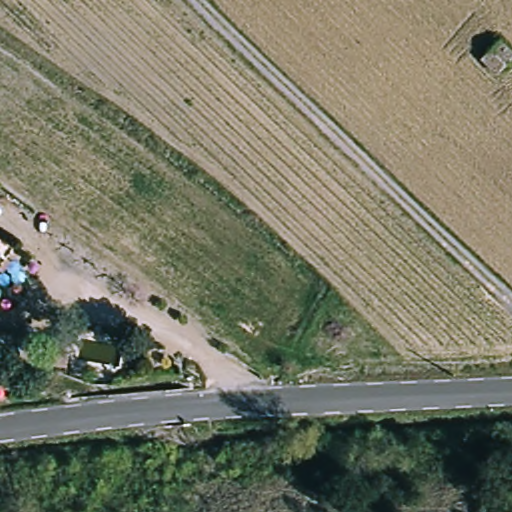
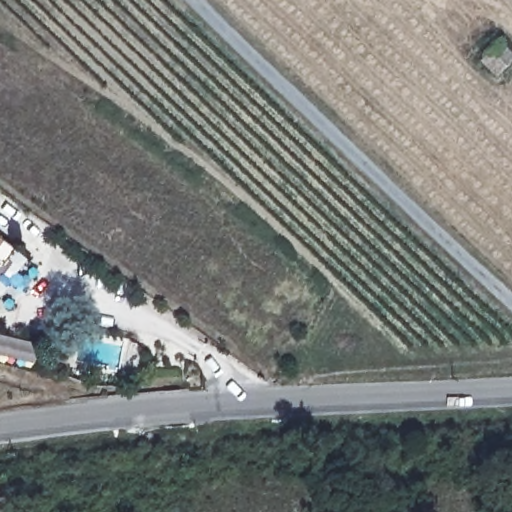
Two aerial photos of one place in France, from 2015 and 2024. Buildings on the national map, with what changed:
unchanged [(499,43),(512,55),(512,59),(498,73),(482,59),(499,43)]
unchanged [(0,267),(0,242),(12,252),(0,267)]

